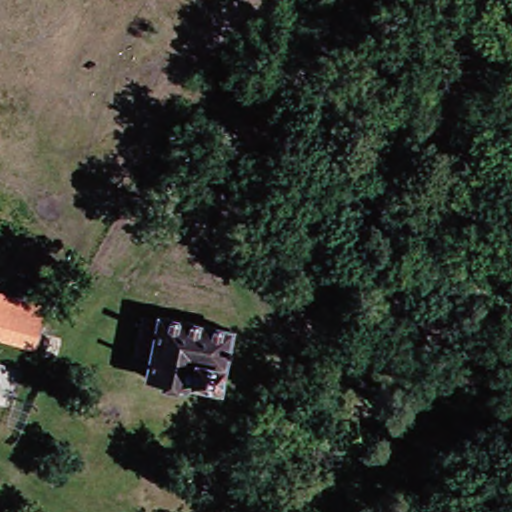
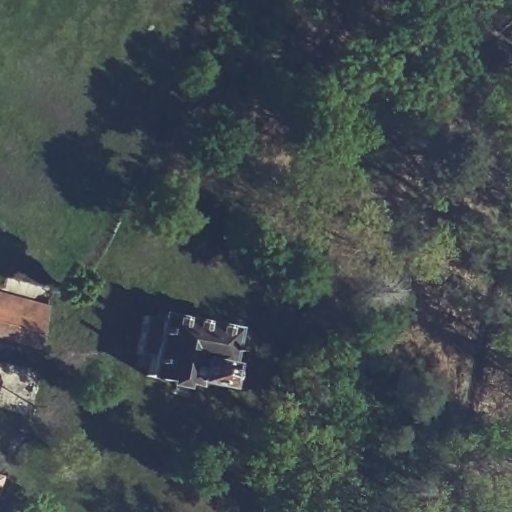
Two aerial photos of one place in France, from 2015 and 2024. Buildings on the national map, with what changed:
unchanged [(0,332),(0,290),(44,304),(37,341),(0,332)]
unchanged [(226,384),(165,374),(168,357),(154,356),(158,307),(238,327),(226,384)]
unchanged [(0,468),(2,469),(0,478),(0,468)]

